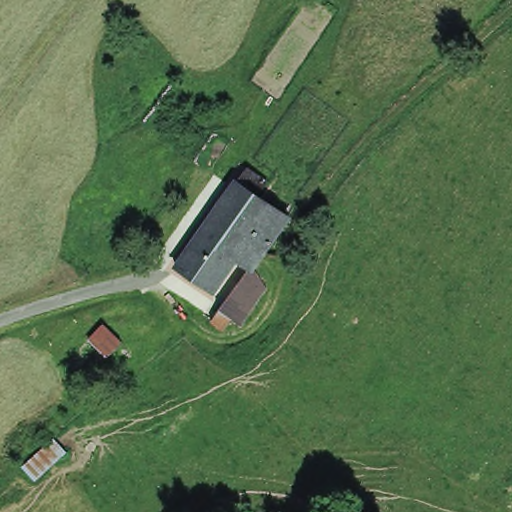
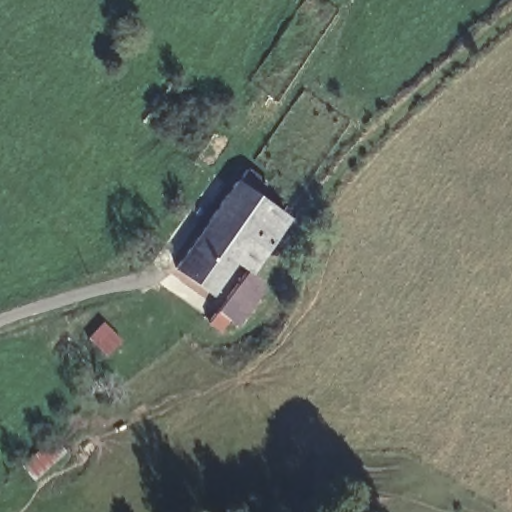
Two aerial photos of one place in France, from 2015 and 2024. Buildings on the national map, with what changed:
unchanged [(206,324),(215,312),(245,271),(231,261),(208,292),(169,266),(244,168),(265,183),(256,195),(287,219),(252,269),(262,289),(233,325),(225,319),(216,332),(206,324)]

